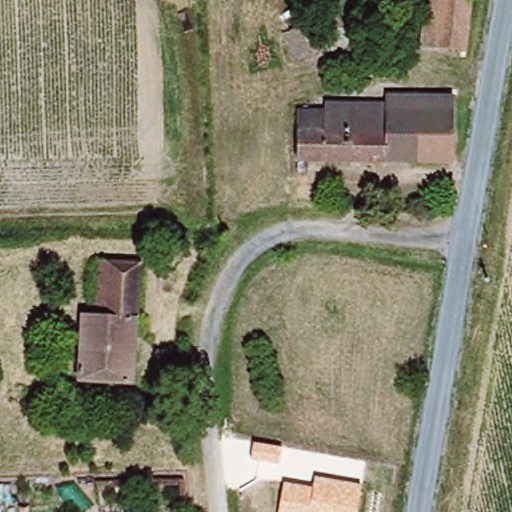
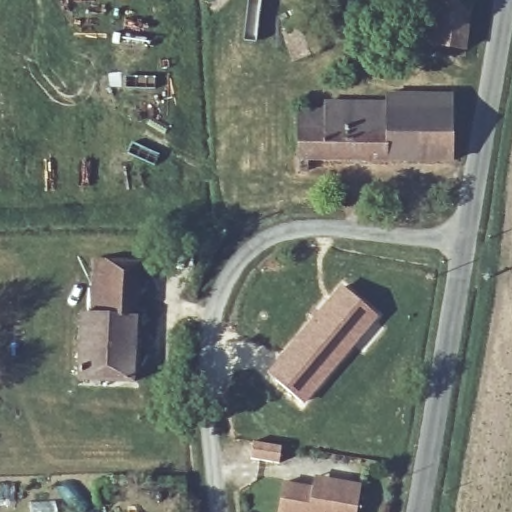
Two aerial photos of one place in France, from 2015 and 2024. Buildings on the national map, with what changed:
unchanged [(422,0),(465,0),(460,48),(419,45),(422,0)]
unchanged [(298,112),(321,114),(321,105),(380,104),(381,93),(446,94),(446,158),(294,160),(298,112)]
unchanged [(132,265),(129,383),(72,382),(74,316),(84,317),(85,263),(132,265)]
new [(306,407),(272,377),(347,290),(381,320),(306,407)]
unchanged [(360,484),(356,512),(279,512),(283,482),(313,487),(314,476),(360,484)]

